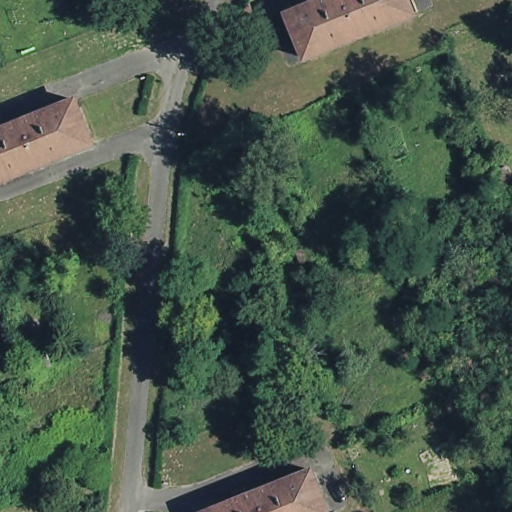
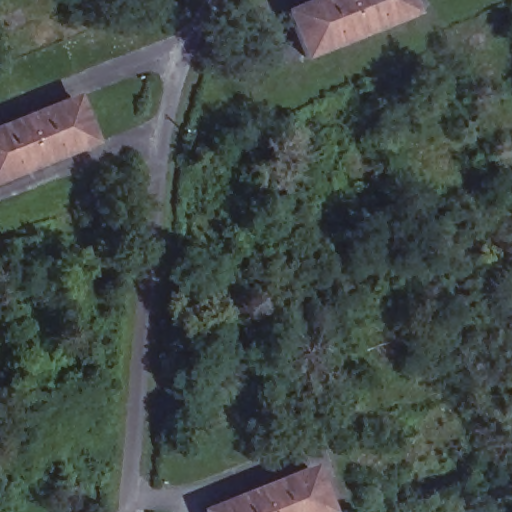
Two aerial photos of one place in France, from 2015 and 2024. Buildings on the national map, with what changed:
unchanged [(316,52),(298,5),(310,0),(420,0),(424,8),(316,52)]
unchanged [(0,173),(0,122),(82,89),(100,133),(0,173)]
unchanged [(512,180),(512,182),(492,189),(487,178),(507,169),(512,180)]
unchanged [(322,256),(300,265),(297,253),(317,244),(322,256)]
unchanged [(279,288),(257,297),(252,283),(273,275),(279,288)]
unchanged [(51,366),(31,374),(26,363),(47,354),(51,366)]
unchanged [(336,508),(325,512),(212,512),(210,509),(319,464),(336,508)]

